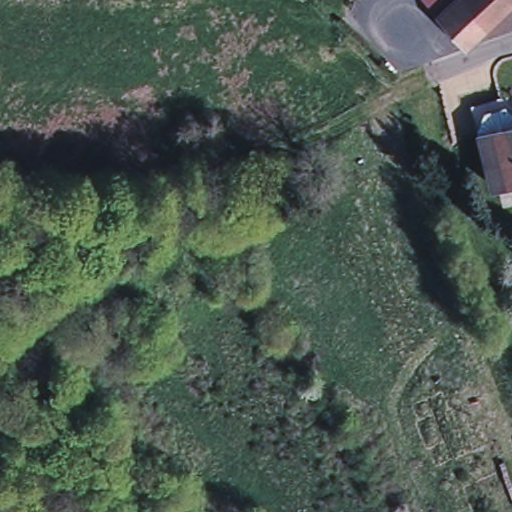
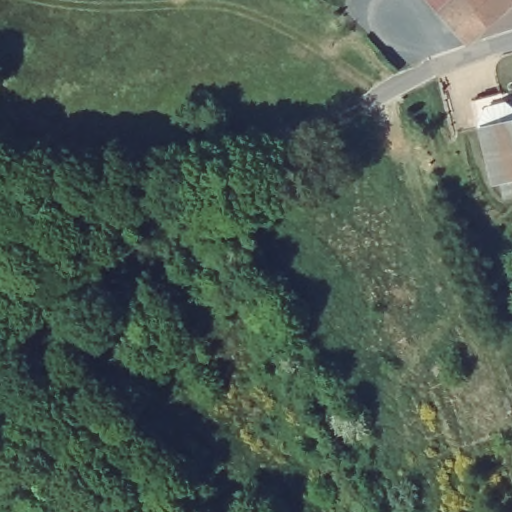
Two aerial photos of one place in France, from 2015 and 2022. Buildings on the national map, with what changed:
unchanged [(440,12),(429,0),(509,0),(512,3),(512,5),(466,45),(438,15),(440,12)]
unchanged [(509,0),(512,0),(512,3),(509,0)]
unchanged [(486,134),(479,135),(472,105),(480,104),(503,98),(505,107),(512,113),(512,125),(486,132),(486,134)]
unchanged [(487,164),(492,162),(486,134),(486,132),(512,125),(512,180),(492,185),(487,164)]

